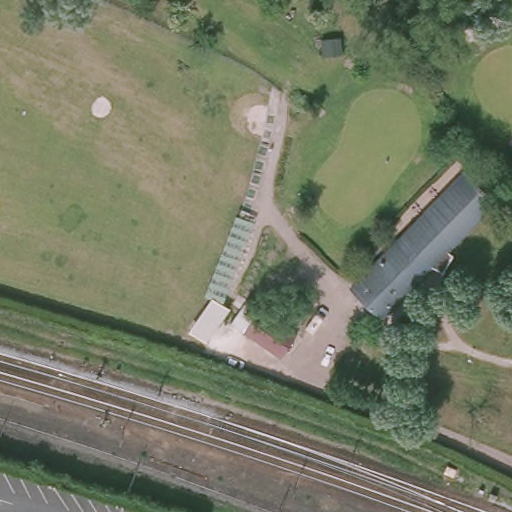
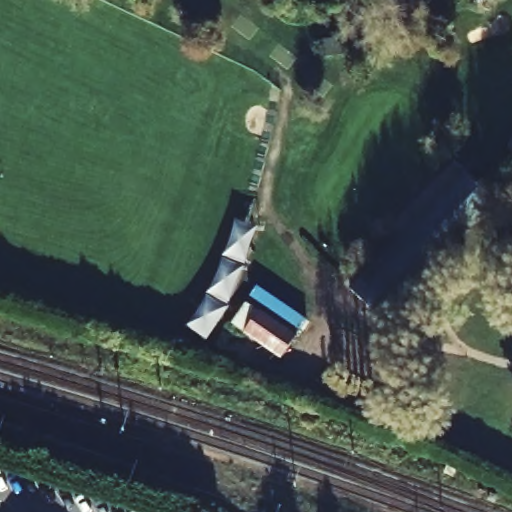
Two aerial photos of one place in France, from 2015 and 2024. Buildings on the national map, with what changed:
unchanged [(491,201),(442,252),(449,258),(440,273),(429,267),(377,321),(347,292),(460,173),(491,201)]
unchanged [(231,307),(209,340),(195,331),(215,298),(231,307)]
unchanged [(298,336),(282,358),(245,334),(261,311),(298,336)]

